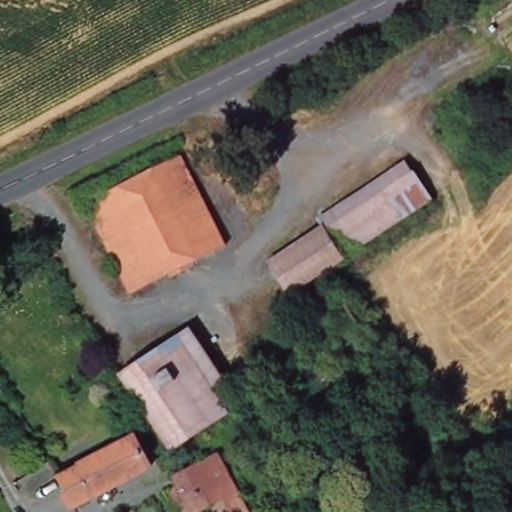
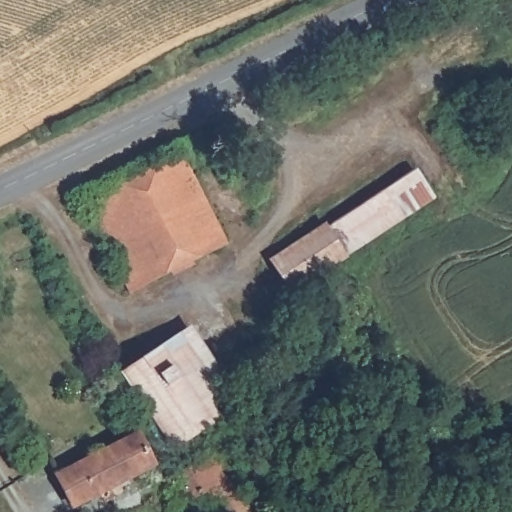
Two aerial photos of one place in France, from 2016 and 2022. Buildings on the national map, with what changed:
unchanged [(226,245),(129,293),(85,202),(181,155),(226,245)]
unchanged [(290,287),(269,256),(323,221),(324,223),(412,164),(431,194),(290,287)]
unchanged [(125,367),(183,330),(234,405),(177,443),(125,367)]
unchanged [(55,475),(135,433),(152,465),(71,506),(55,475)]
unchanged [(201,512),(181,512),(170,491),(184,484),(179,475),(225,451),(255,512),(219,512),(215,505),(201,512)]

